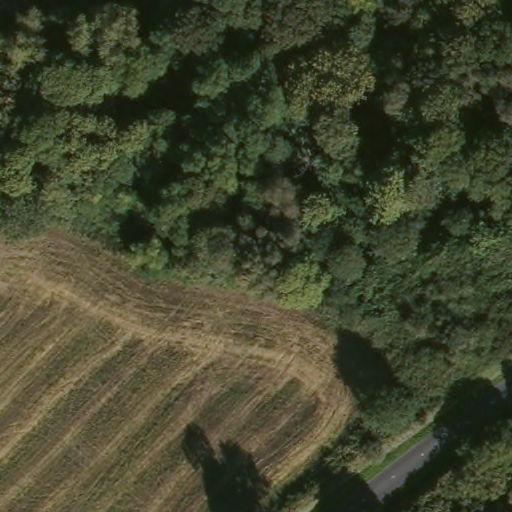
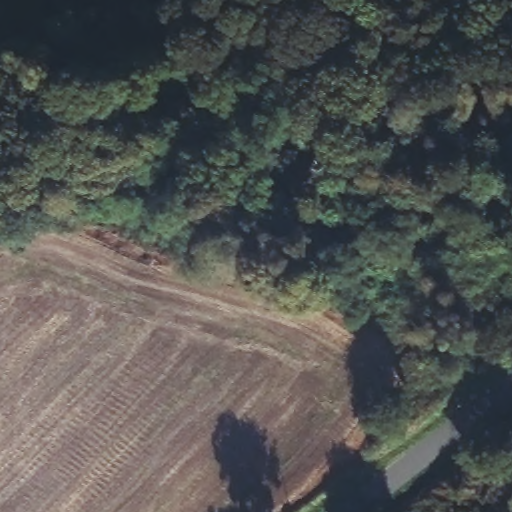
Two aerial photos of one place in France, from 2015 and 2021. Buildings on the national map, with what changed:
[]

